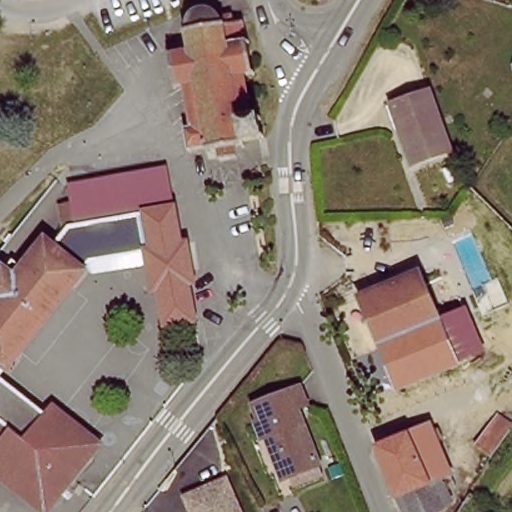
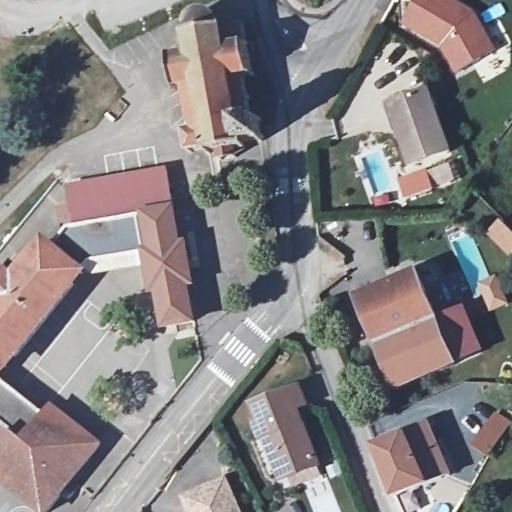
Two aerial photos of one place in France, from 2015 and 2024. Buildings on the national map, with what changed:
new [(420,0),(452,0),(480,16),(499,55),(457,76),(443,49),(405,27),(420,0)]
unchanged [(190,125),(195,124),(195,79),(178,80),(180,45),(194,45),(195,9),(205,1),(225,3),(226,15),(231,15),(243,15),(242,67),(236,69),(241,163),(226,163),(224,150),(188,150),(190,125)]
unchanged [(425,89),(449,150),(409,166),(385,104),(425,89)]
unchanged [(183,247),(189,247),(195,286),(189,288),(194,323),(165,326),(159,286),(153,287),(148,250),(87,265),(0,377),(0,255),(66,176),(73,181),(74,191),(171,174),(179,211),(182,235),(183,247)]
new [(497,241),(489,234),(498,221),(507,228),(497,241)]
new [(512,252),(499,241),(508,229),(512,232),(512,252)]
unchanged [(455,368),(457,371),(399,399),(379,355),(358,304),(390,290),(420,281),(439,327),(455,368)]
unchanged [(467,316),(484,355),(455,368),(439,327),(467,316)]
unchanged [(42,412),(48,402),(99,443),(44,512),(29,512),(19,503),(0,489),(0,378),(42,412)]
unchanged [(268,445),(263,448),(254,430),(261,426),(257,414),(302,395),(310,416),(300,417),(312,453),(318,470),(284,483),(268,445)]
unchanged [(475,452),(499,419),(512,428),(512,430),(488,460),(475,452)]
unchanged [(377,457),(432,431),(462,494),(450,500),(452,508),(447,512),(401,512),(379,461),(377,457)]
unchanged [(204,491),(225,480),(240,512),(190,512),(185,500),(204,491)]

